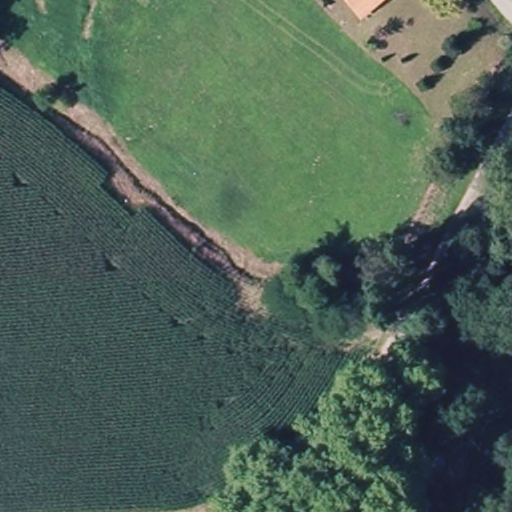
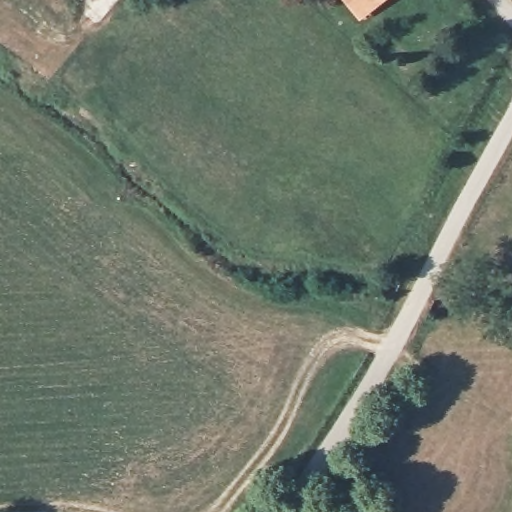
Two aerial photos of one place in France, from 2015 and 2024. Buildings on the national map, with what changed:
unchanged [(346,0),(376,0),(368,6),(357,14),(346,0)]

